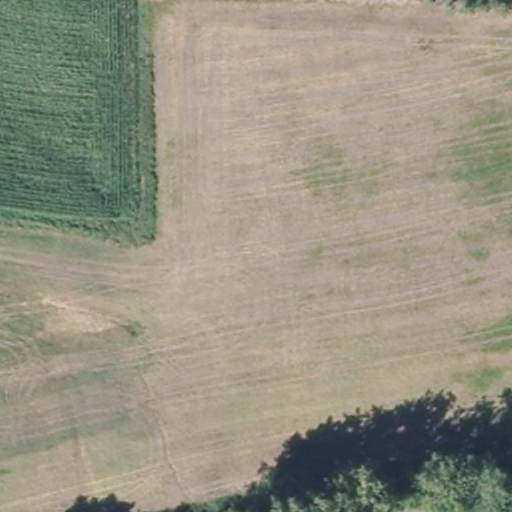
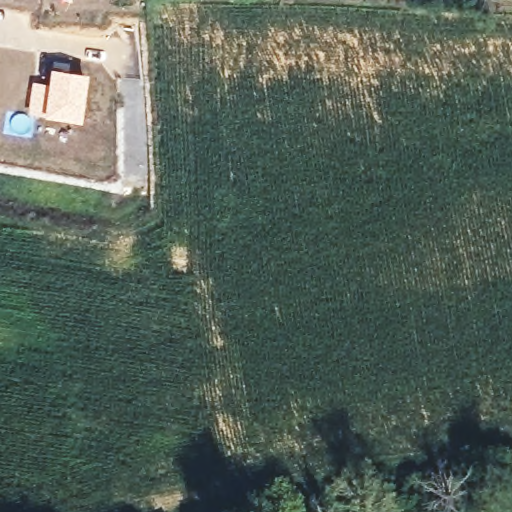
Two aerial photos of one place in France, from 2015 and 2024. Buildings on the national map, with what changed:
new [(31,81),(45,82),(49,67),(87,74),(79,122),(26,111),(31,81)]

